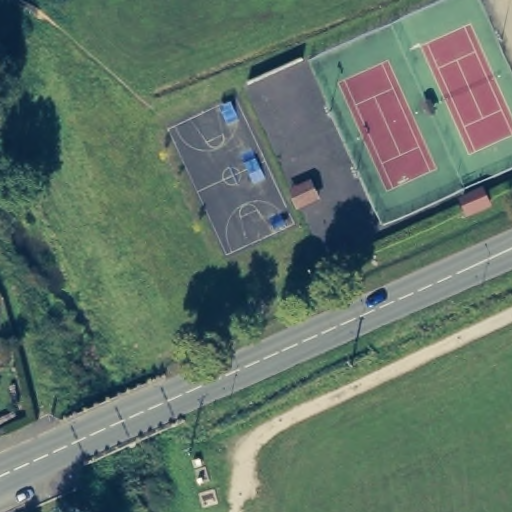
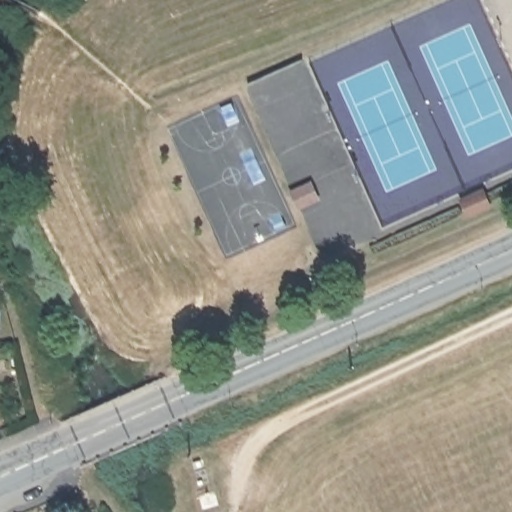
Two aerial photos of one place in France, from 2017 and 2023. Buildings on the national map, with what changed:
unchanged [(317,213),(302,221),(295,208),(311,200),(317,213)]

